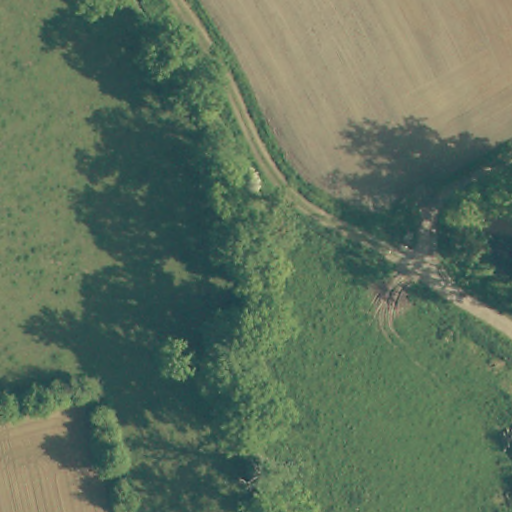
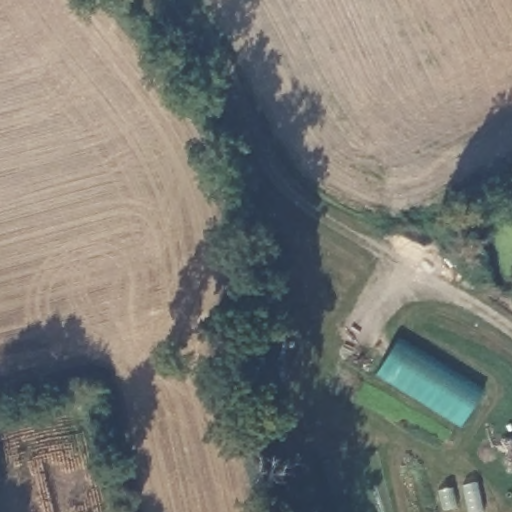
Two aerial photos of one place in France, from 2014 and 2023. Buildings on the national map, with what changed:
new [(460,425),(377,373),(399,338),(483,389),(460,425)]

